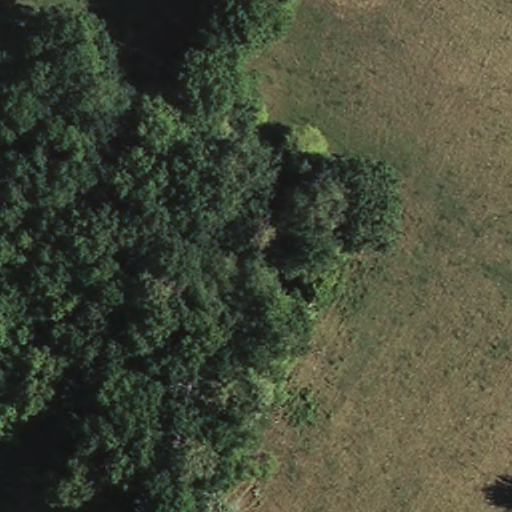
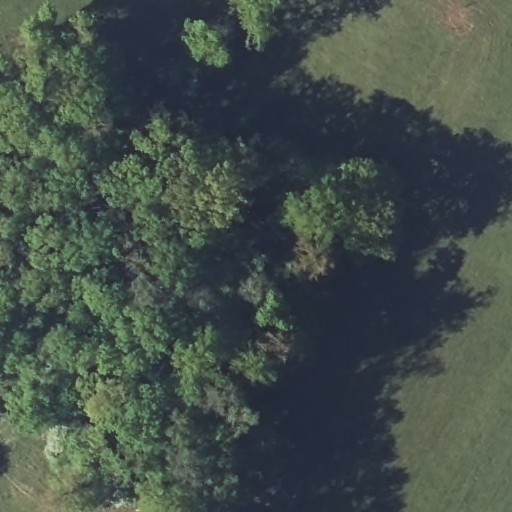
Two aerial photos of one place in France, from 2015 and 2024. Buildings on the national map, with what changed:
[]

